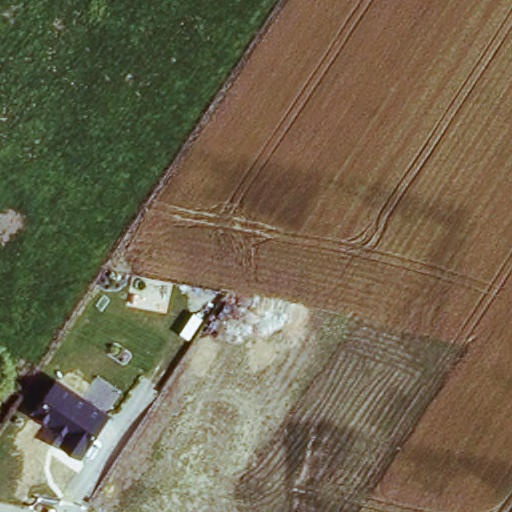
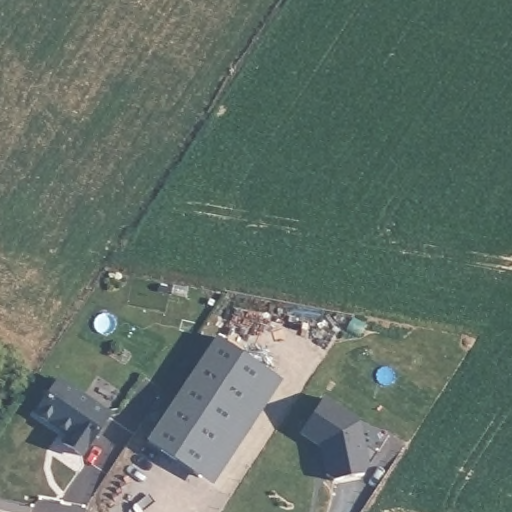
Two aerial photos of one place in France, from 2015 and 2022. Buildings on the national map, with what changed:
new [(217,340),(266,371),(196,479),(148,448),(217,340)]
unchanged [(67,441),(73,432),(57,422),(41,411),(63,378),(114,414),(86,454),(67,441)]
new [(322,402),(358,426),(362,447),(376,457),(362,478),(333,485),(326,480),(320,451),(299,437),(322,402)]

